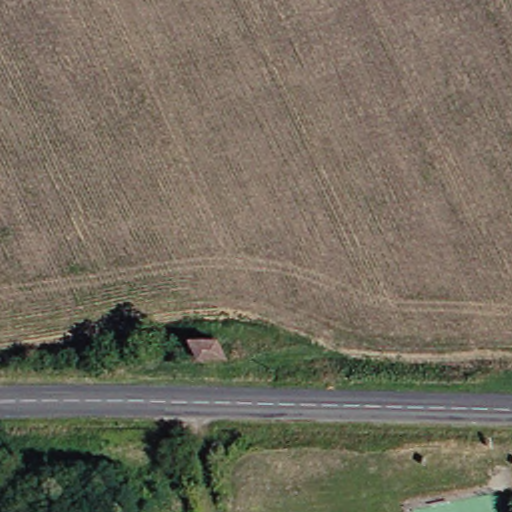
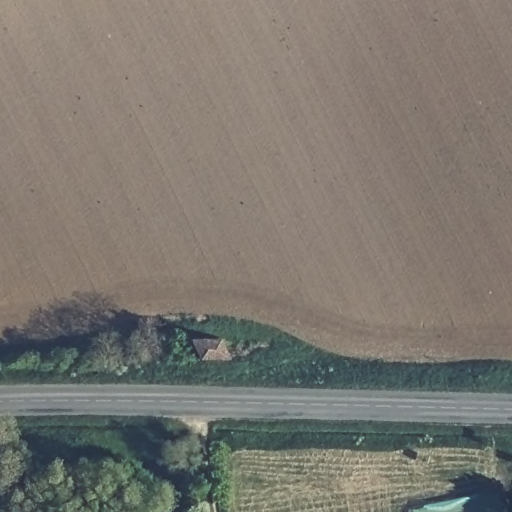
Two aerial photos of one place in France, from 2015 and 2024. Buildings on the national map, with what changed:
unchanged [(230,359),(200,360),(189,337),(221,336),(230,359)]

